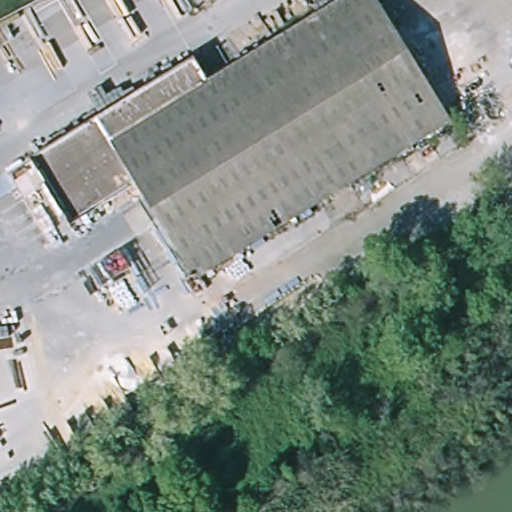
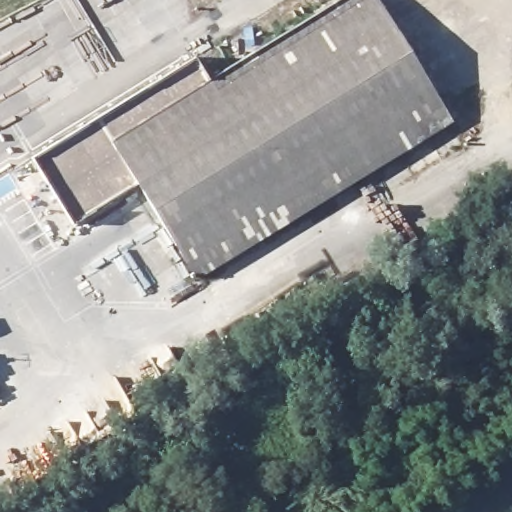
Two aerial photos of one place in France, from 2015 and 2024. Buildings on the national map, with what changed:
unchanged [(197,272),(138,178),(73,217),(33,153),(194,54),(207,76),(331,0),(379,0),(450,116),(197,272)]

